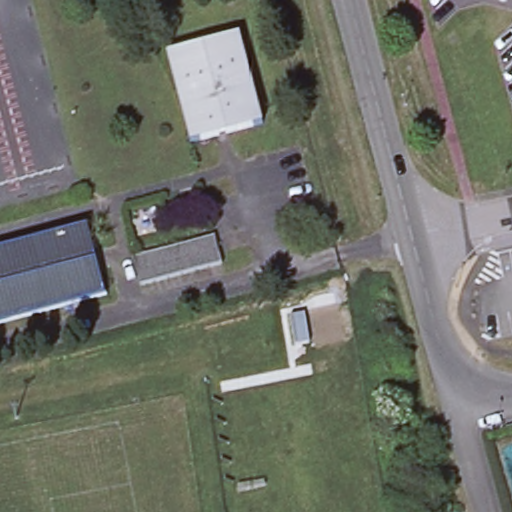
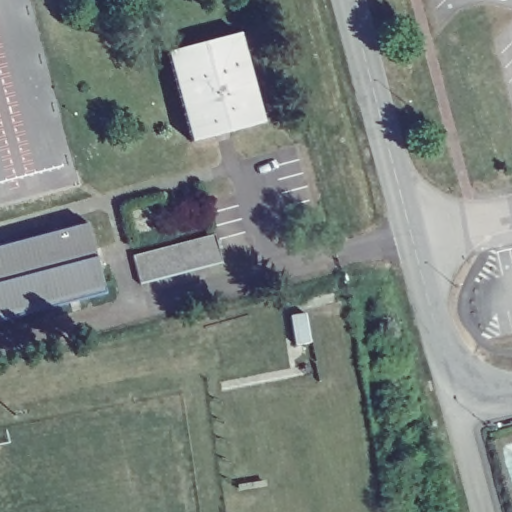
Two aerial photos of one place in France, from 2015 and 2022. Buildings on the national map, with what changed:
unchanged [(239,32),(263,122),(193,140),(168,51),(239,32)]
unchanged [(73,225),(87,222),(105,292),(92,295),(73,225)]
unchanged [(73,225),(92,295),(0,319),(0,244),(73,225)]
unchanged [(133,255),(150,251),(215,234),(222,261),(157,278),(140,282),(133,255)]

